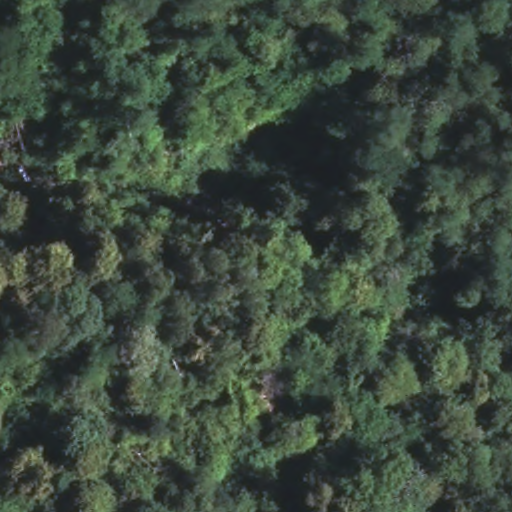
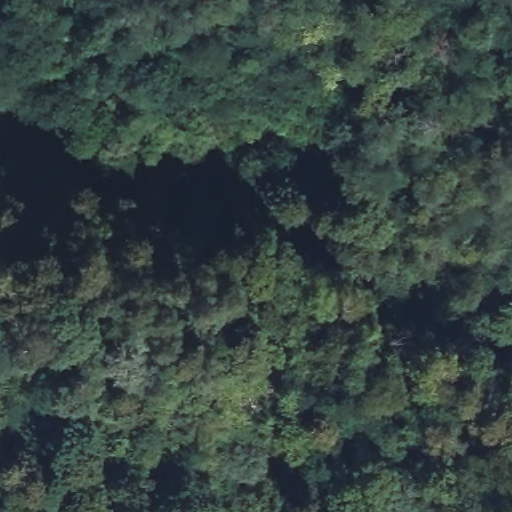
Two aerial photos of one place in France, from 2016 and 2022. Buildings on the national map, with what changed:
unchanged [(180,464),(232,411),(260,436),(204,489),(180,464)]

